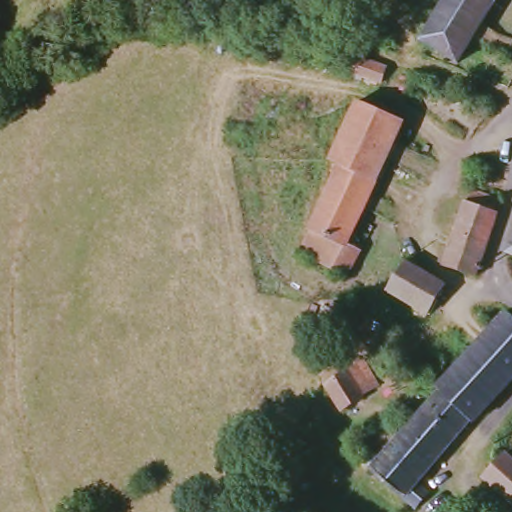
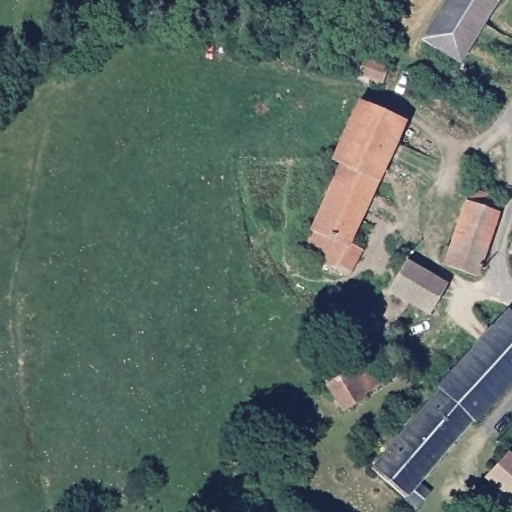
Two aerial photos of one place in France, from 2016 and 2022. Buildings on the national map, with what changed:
unchanged [(449,0),(500,0),(459,68),(422,45),(449,0)]
unchanged [(382,87),(353,78),(359,61),(387,71),(382,87)]
unchanged [(404,126),(349,248),(362,255),(347,280),(300,258),(340,169),(332,165),(359,105),(404,126)]
unchanged [(465,201),(467,201),(472,189),(499,198),(495,211),(499,212),(477,276),(444,265),(465,201)]
unchanged [(508,257),(512,247),(512,259),(508,257)]
unchanged [(446,284),(428,314),(388,290),(405,260),(446,284)]
unchanged [(512,314),(512,380),(474,421),(471,419),(443,392),(437,387),(507,310),(512,314)]
unchanged [(380,385),(364,394),(365,397),(342,411),(322,374),(335,367),(344,376),(365,359),(380,385)]
unchanged [(394,382),(387,376),(393,369),(400,374),(394,382)]
unchanged [(417,508),(405,497),(371,468),(407,429),(409,431),(443,392),(471,419),(417,482),(430,493),(417,508)]
unchanged [(507,452),(512,457),(512,504),(484,477),(507,452)]

